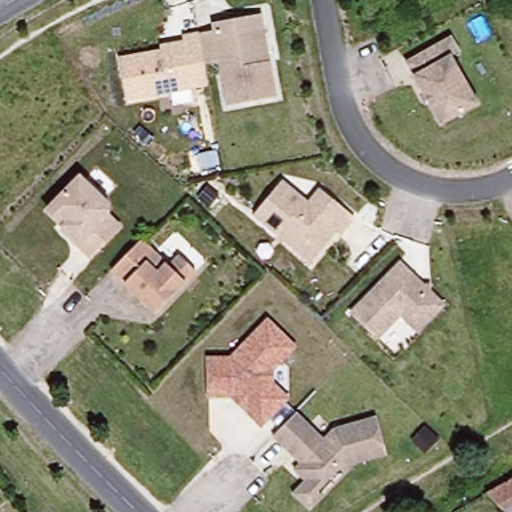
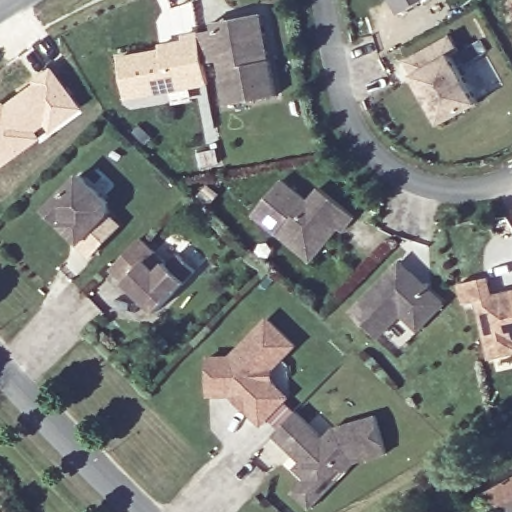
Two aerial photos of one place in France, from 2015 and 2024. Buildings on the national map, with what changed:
new [(393,14),(385,0),(418,0),(393,14)]
unchanged [(227,104),(220,60),(205,63),(199,33),(214,30),(212,22),(262,14),(270,60),(277,96),(227,104)]
unchanged [(207,85),(124,99),(116,53),(182,40),(180,31),(197,28),(199,33),(205,63),(207,85)]
unchanged [(405,62),(451,37),(459,51),(451,56),(477,104),(440,125),(405,62)]
new [(49,62),(83,107),(50,132),(0,167),(0,100),(14,91),(49,62)]
unchanged [(43,210),(79,172),(111,198),(110,212),(121,224),(89,256),(79,244),(43,210)]
unchanged [(252,214),(282,179),(307,199),(318,186),(355,215),(342,231),(337,228),(308,260),(252,214)]
unchanged [(111,270),(127,253),(141,239),(169,266),(179,256),(196,272),(156,313),(111,270)]
unchanged [(407,320),(401,313),(377,337),(352,312),(401,261),(443,304),(428,320),(418,330),(407,320)]
new [(489,277),(492,294),(512,290),(512,354),(487,359),(477,303),(462,306),(457,283),(489,277)]
unchanged [(230,395),(205,397),(205,356),(230,355),(269,316),(298,344),(272,371),(273,381),(292,397),(261,426),(230,395)]
unchanged [(307,483),(295,472),(302,465),(274,439),(292,420),(297,414),(325,440),(335,431),(376,419),(387,457),(356,466),(346,476),(311,512),(310,512),(294,496),(307,483)]
unchanged [(508,512),(503,512),(491,499),(512,487),(512,510),(508,512)]

